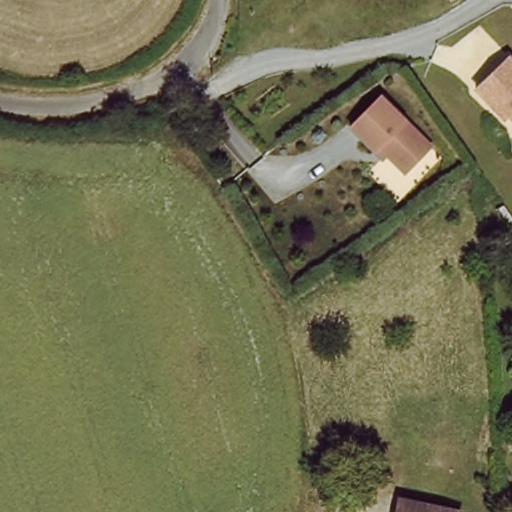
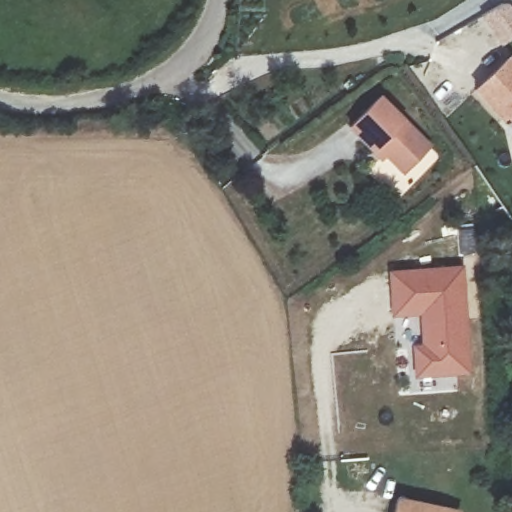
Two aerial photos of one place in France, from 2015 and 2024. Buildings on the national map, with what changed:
unchanged [(481,90),(512,58),(512,116),(510,119),(481,90)]
unchanged [(382,155),(357,132),(385,101),(438,149),(414,175),(394,158),(390,162),(382,155)]
new [(414,379),(412,344),(422,343),(420,316),(391,318),(388,271),(464,265),(471,373),(414,379)]
unchanged [(459,511),(458,512),(393,512),(398,495),(459,511)]

